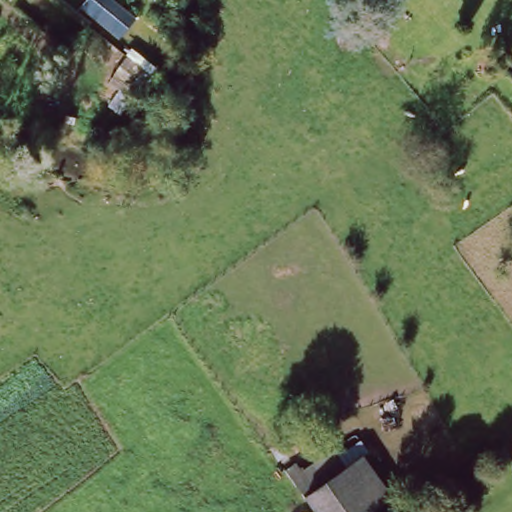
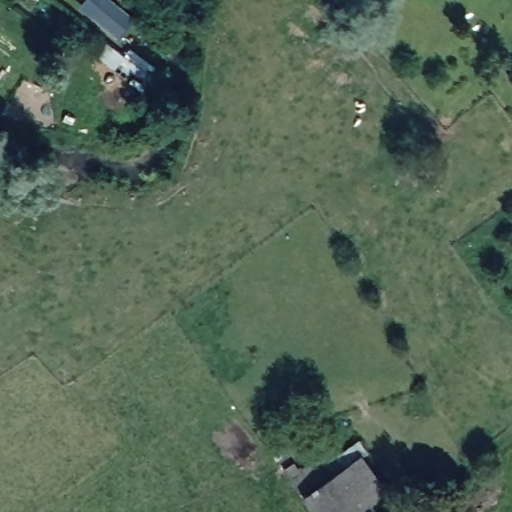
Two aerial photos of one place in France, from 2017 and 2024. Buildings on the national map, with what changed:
unchanged [(104,0),(114,0),(122,8),(105,29),(86,15),(104,0)]
unchanged [(126,80),(112,70),(123,56),(132,46),(141,54),(133,64),(137,67),(126,80)]
unchanged [(512,74),(504,62),(512,55),(512,74)]
unchanged [(295,456),(306,469),(334,448),(340,452),(357,436),(370,450),(364,455),(403,508),(398,512),(315,512),(306,495),(284,467),(295,456)]

